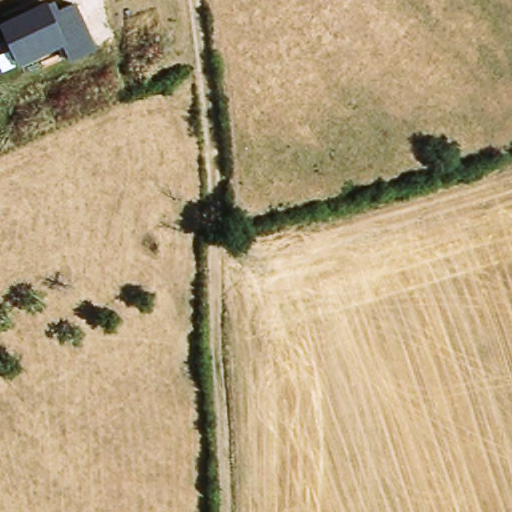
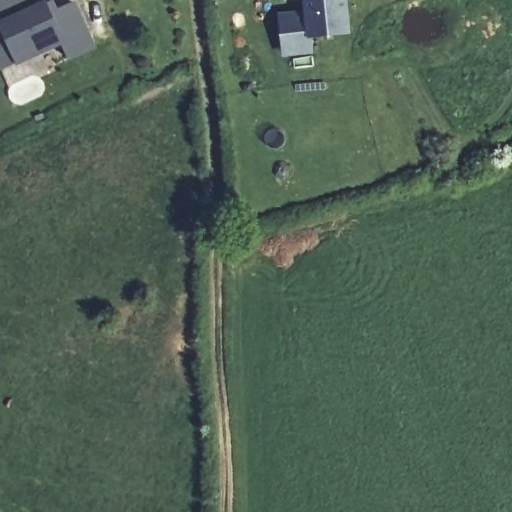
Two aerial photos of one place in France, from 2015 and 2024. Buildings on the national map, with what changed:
new [(0,21),(0,2),(5,0),(38,0),(39,4),(0,21)]
unchanged [(54,0),(59,11),(78,1),(98,46),(68,59),(63,45),(16,66),(0,28),(0,21),(49,0),(54,0)]
new [(284,49),(281,16),(307,12),(306,0),(345,0),(348,32),(311,36),(312,46),(312,51),(284,53),(284,49)]
new [(16,66),(1,72),(0,69),(0,28),(16,66)]

